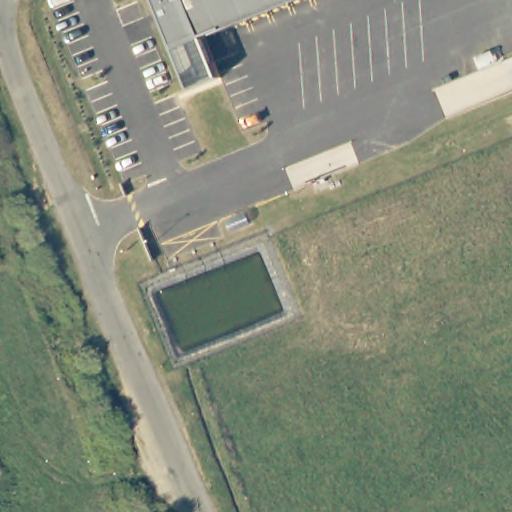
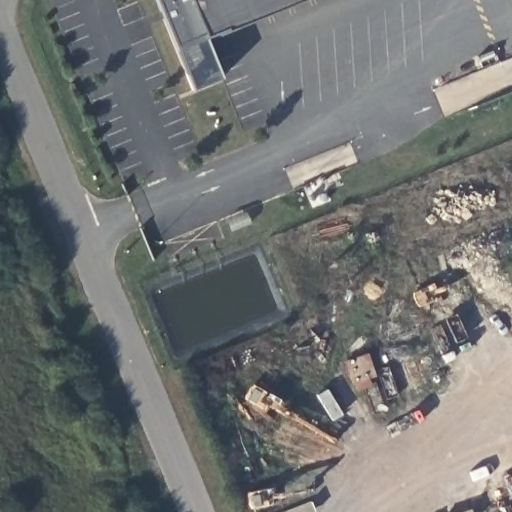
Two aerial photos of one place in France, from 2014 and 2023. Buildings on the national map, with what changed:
unchanged [(223,81),(194,91),(157,0),(299,0),(205,37),(223,81)]

